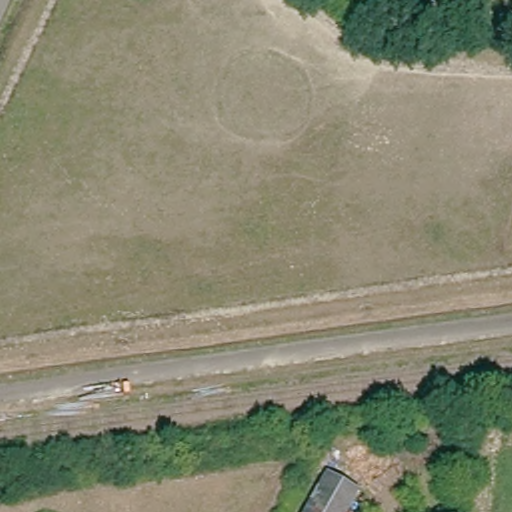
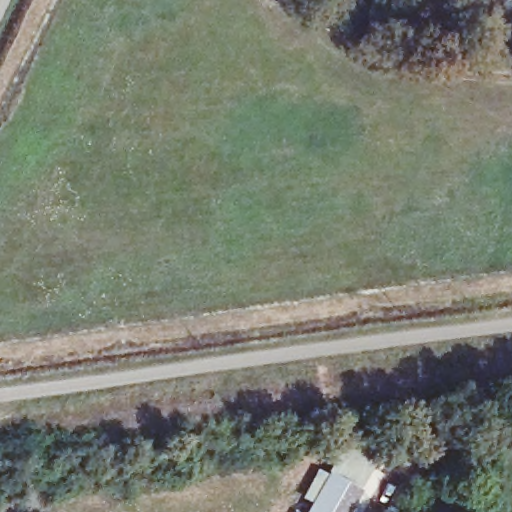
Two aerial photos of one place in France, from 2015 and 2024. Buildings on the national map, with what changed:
unchanged [(328,475),(358,492),(347,512),(307,512),(328,475)]

